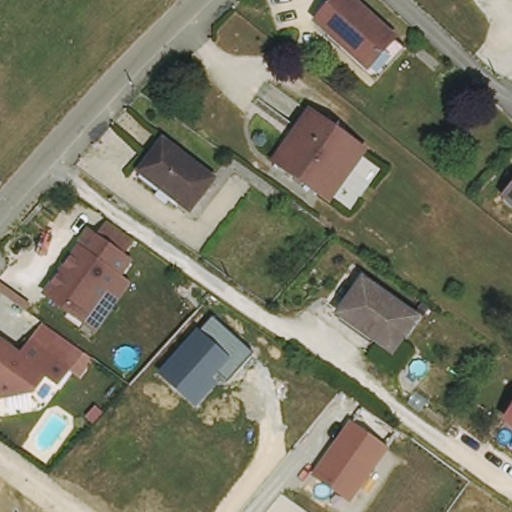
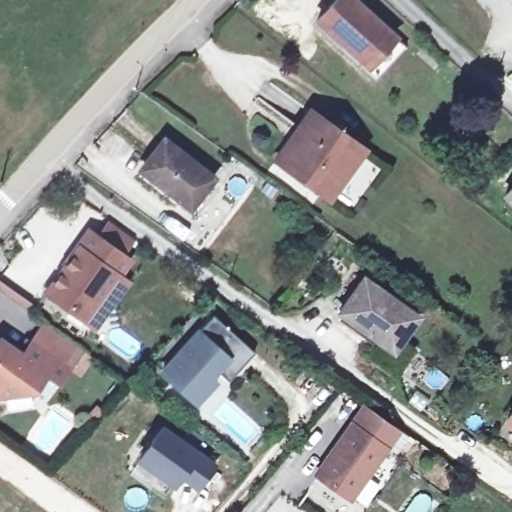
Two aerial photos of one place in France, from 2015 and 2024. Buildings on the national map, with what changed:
unchanged [(368,53),(317,8),(324,0),(366,0),(392,25),(403,35),(378,63),(368,53)]
unchanged [(366,144),(353,163),(345,158),(324,189),(279,159),(310,109),(366,144)]
unchanged [(168,139),(215,174),(192,204),(146,168),(168,139)]
unchanged [(512,179),(512,214),(495,199),(512,179)]
unchanged [(94,322),(85,315),(47,288),(89,230),(96,235),(105,222),(130,239),(120,253),(127,258),(116,273),(125,279),(94,322)]
unchanged [(420,309),(395,343),(342,305),(368,270),(420,309)]
unchanged [(254,352),(230,382),(217,371),(211,379),(217,384),(197,407),(158,373),(195,328),(200,330),(212,317),(254,352)]
unchanged [(2,330),(25,347),(34,333),(72,359),(62,374),(48,366),(40,377),(6,388),(0,383),(0,333),(2,330)]
unchanged [(512,391),(512,428),(497,417),(512,391)]
unchanged [(312,476),(350,421),(362,404),(401,431),(388,448),(352,502),(312,476)]
new [(195,449),(217,464),(198,491),(180,479),(172,488),(135,461),(162,424),(195,449)]

